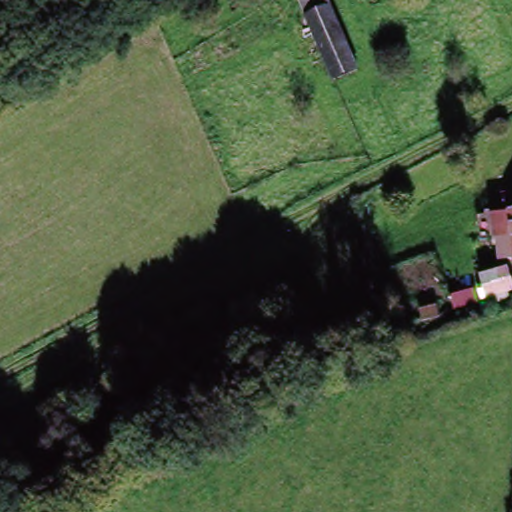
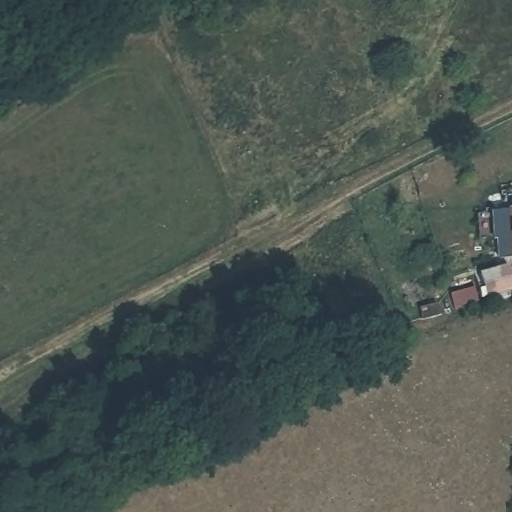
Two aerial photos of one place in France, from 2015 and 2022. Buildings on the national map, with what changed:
demolished [(354,71),(331,79),(299,0),(327,0),(354,71)]
unchanged [(512,211),(512,256),(512,257),(511,212),(512,211)]
unchanged [(449,297),(486,280),(495,299),(473,308),(457,315),(449,297)]

